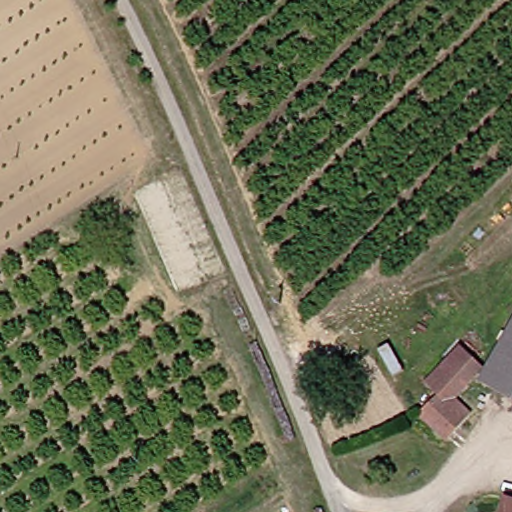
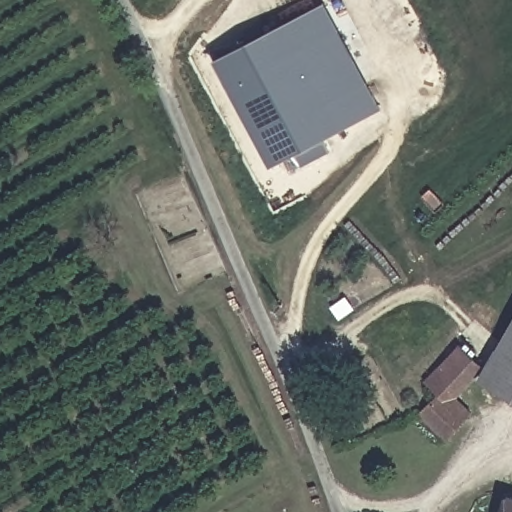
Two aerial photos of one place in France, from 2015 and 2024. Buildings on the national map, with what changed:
new [(213,61),(326,2),(382,110),(270,168),(213,61)]
new [(492,361),(512,326),(512,400),(477,378),(492,361)]
demolished [(512,337),(512,366),(498,358),(505,349),(512,337)]
unchanged [(465,394),(492,418),(465,451),(427,421),(443,401),(428,388),(440,374),(445,379),(473,344),(492,361),(465,394)]

